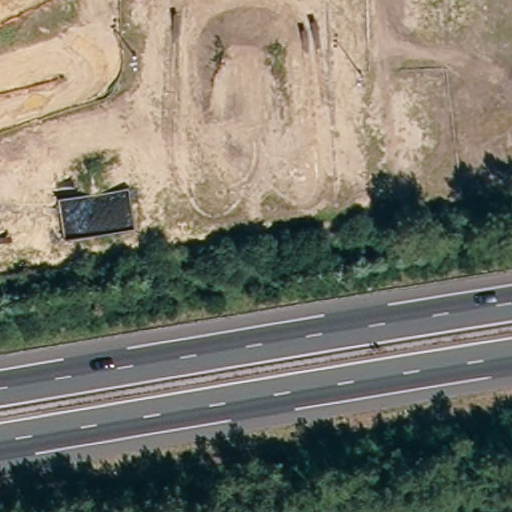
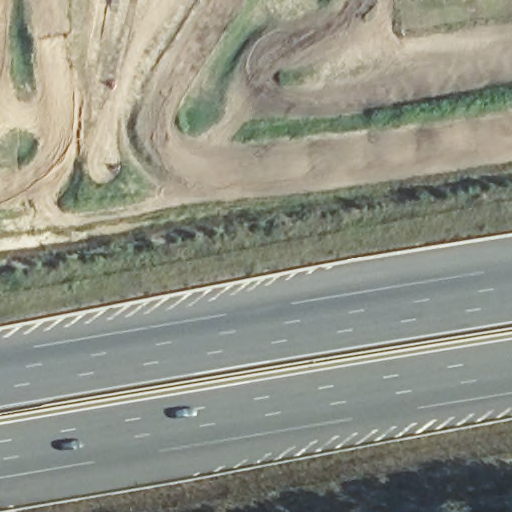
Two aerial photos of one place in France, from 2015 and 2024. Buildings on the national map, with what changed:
demolished [(136,231),(67,241),(60,200),(130,189),(136,231)]

